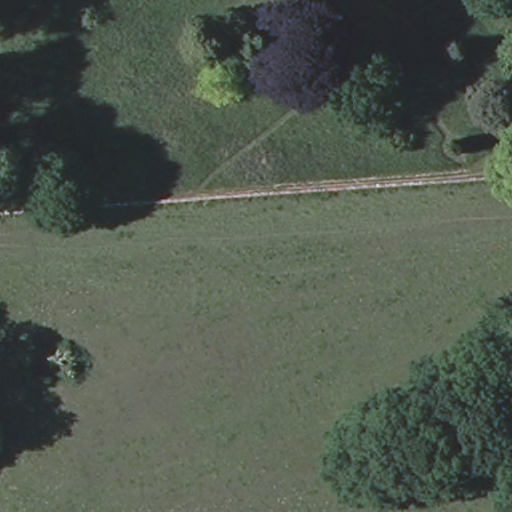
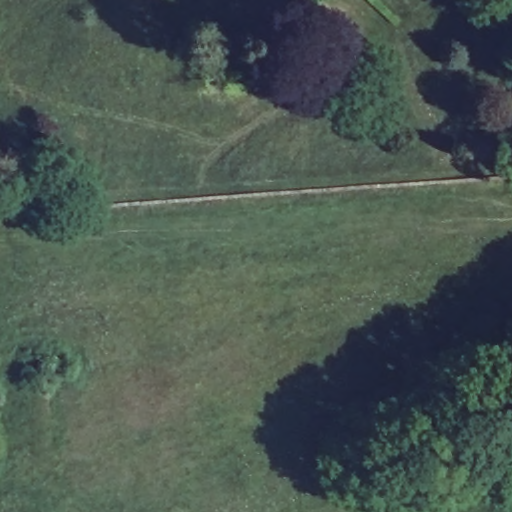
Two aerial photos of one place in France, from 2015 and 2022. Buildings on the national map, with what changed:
[]

